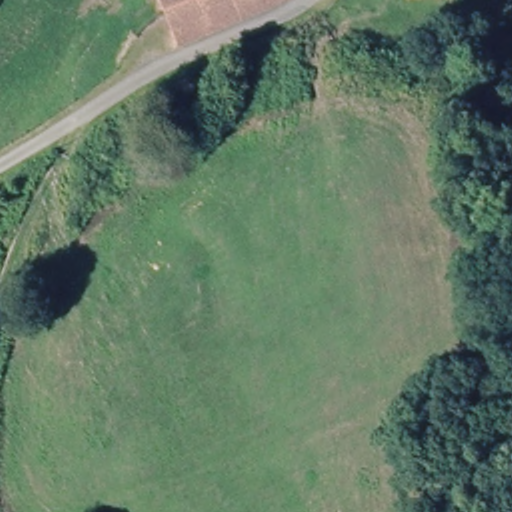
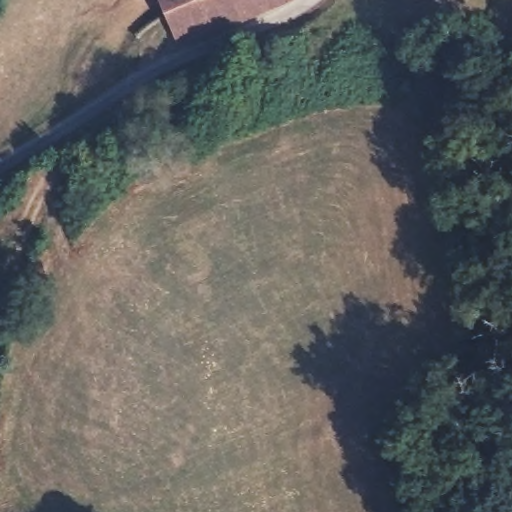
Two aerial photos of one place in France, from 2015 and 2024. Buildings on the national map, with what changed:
unchanged [(165,0),(287,0),(184,44),(165,0)]

